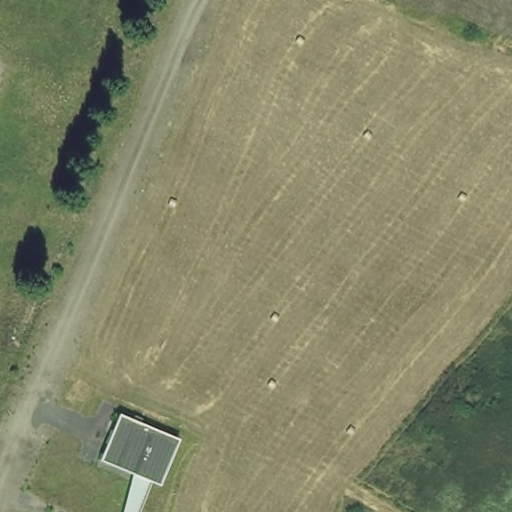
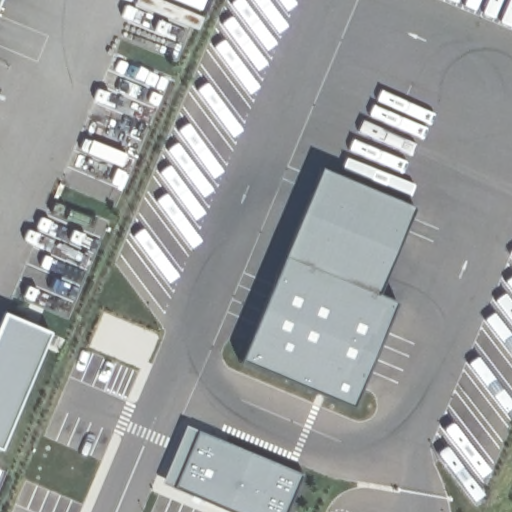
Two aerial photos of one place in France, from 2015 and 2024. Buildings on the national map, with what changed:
new [(417,208),(381,296),(396,303),(356,407),(243,361),(324,172),(417,208)]
new [(51,333),(2,451),(0,450),(0,322),(4,314),(51,333)]
demolished [(159,485),(150,481),(138,512),(116,512),(131,474),(98,457),(116,413),(178,437),(159,485)]
new [(273,512),(234,512),(165,483),(187,426),(290,471),(273,512)]

